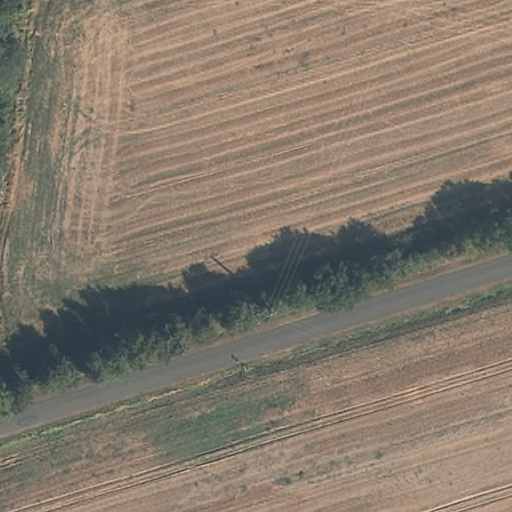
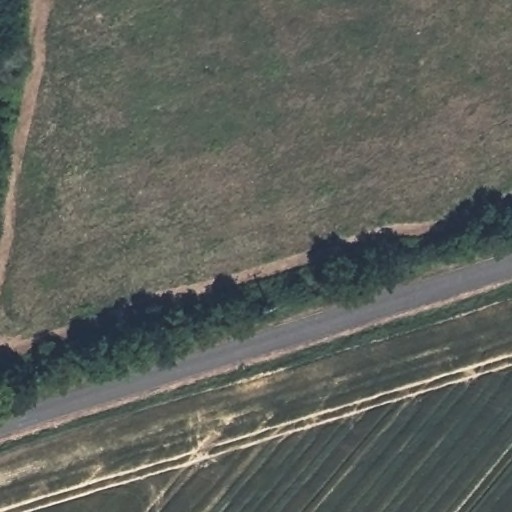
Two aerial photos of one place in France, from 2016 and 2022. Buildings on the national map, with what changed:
[]

